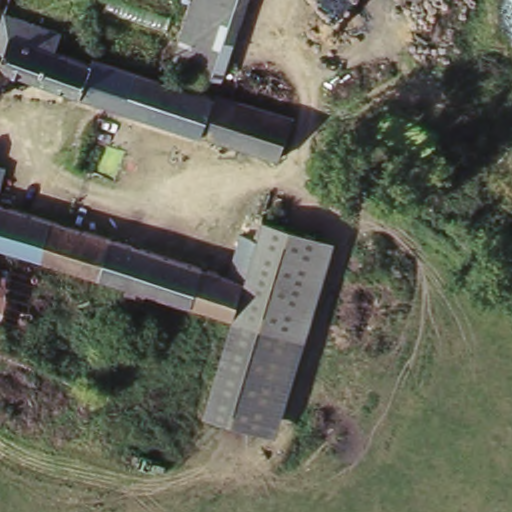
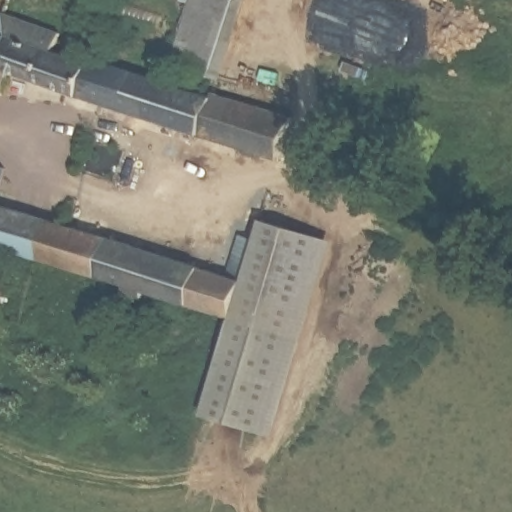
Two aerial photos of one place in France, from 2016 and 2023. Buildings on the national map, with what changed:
unchanged [(197,0),(249,0),(225,70),(179,54),(197,0)]
unchanged [(109,106),(14,75),(5,96),(0,94),(0,37),(3,27),(6,15),(60,30),(51,50),(87,64),(91,56),(165,81),(213,97),(215,93),(295,118),(282,160),(109,106)]
unchanged [(0,198),(0,164),(7,166),(0,198)]
unchanged [(0,209),(244,281),(232,323),(0,252),(0,209)]
unchanged [(261,223),(333,242),(306,342),(232,323),(244,281),(261,223)]
unchanged [(0,271),(48,287),(34,332),(0,321),(0,271)]
unchanged [(306,342),(278,440),(207,417),(233,324),(306,342)]

